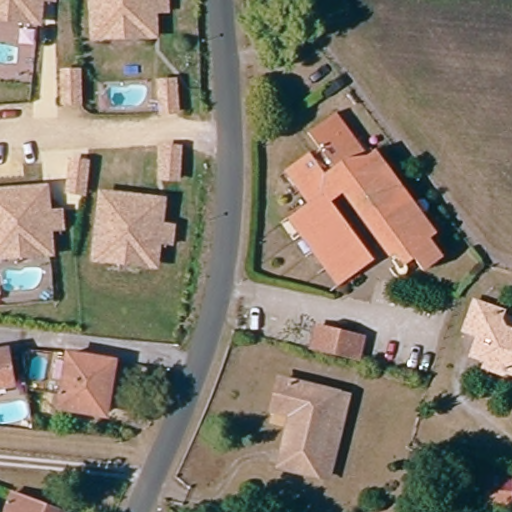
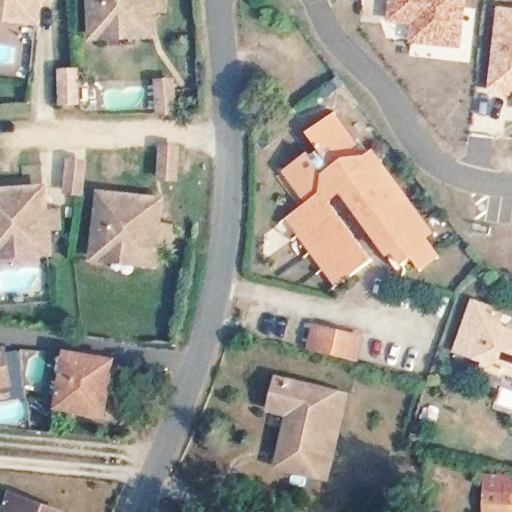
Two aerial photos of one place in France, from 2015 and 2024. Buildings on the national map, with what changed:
unchanged [(38,0),(36,19),(20,17),(0,15),(0,0),(38,0)]
unchanged [(166,0),(166,15),(152,16),(152,37),(136,38),(110,39),(94,39),(93,0),(166,0)]
new [(412,24),(388,21),(391,0),(468,0),(463,49),(410,43),(412,24)]
new [(498,7),(512,9),(512,96),(490,92),(498,7)]
unchanged [(77,105),(62,106),(61,75),(77,75),(77,105)]
unchanged [(175,115),(160,116),(157,86),(173,85),(175,115)]
unchanged [(420,264),(411,255),(409,252),(400,258),(337,177),(320,190),(368,253),(337,275),(288,208),(303,197),(280,166),(303,149),(306,151),(316,144),(306,131),(331,113),(361,155),(365,152),(430,240),(438,250),(420,264)]
unchanged [(175,182),(160,181),(162,151),(177,151),(175,182)]
unchanged [(81,196),(65,194),(69,164),(85,166),(81,196)]
unchanged [(0,190),(26,188),(42,187),(44,209),(59,208),(60,227),(45,228),(47,250),(30,251),(5,252),(0,252),(0,190)]
unchanged [(99,256),(105,194),(122,196),(147,199),(164,201),(161,222),(176,224),(174,243),(159,241),(156,263),(140,261),(115,258),(99,256)]
unchanged [(490,322),(496,324),(497,328),(512,333),(512,370),(508,369),(498,372),(481,368),(483,360),(468,355),(473,333),(460,329),(466,302),(493,311),(490,322)]
unchanged [(306,326),(355,337),(350,359),(301,348),(306,326)]
unchanged [(17,386),(0,388),(0,346),(11,345),(17,386)]
unchanged [(105,363),(95,414),(52,407),(61,355),(105,362),(105,363)]
unchanged [(310,474),(275,466),(287,414),(268,409),(276,381),(329,394),(310,474)]
unchanged [(342,397),(323,477),(310,474),(329,394),(342,397)]
unchanged [(5,497),(47,512),(0,512),(0,511),(5,497)]
unchanged [(484,499),(510,500),(510,512),(484,512),(484,499)]

